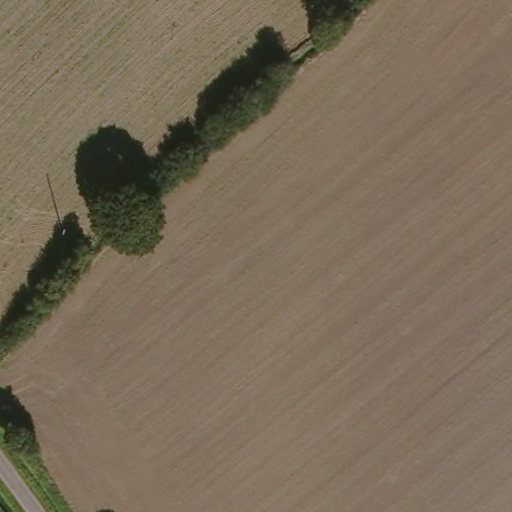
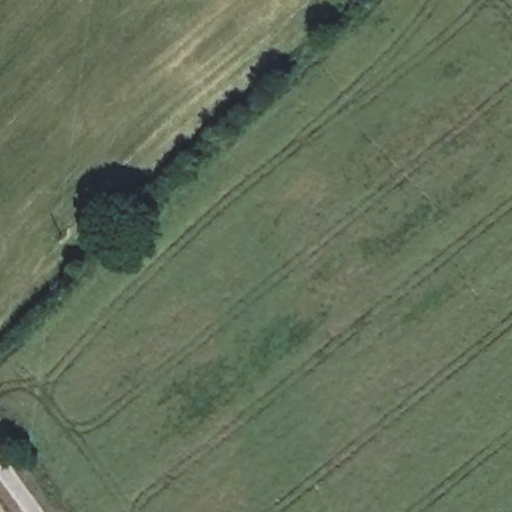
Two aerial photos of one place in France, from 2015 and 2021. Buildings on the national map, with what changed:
[]

